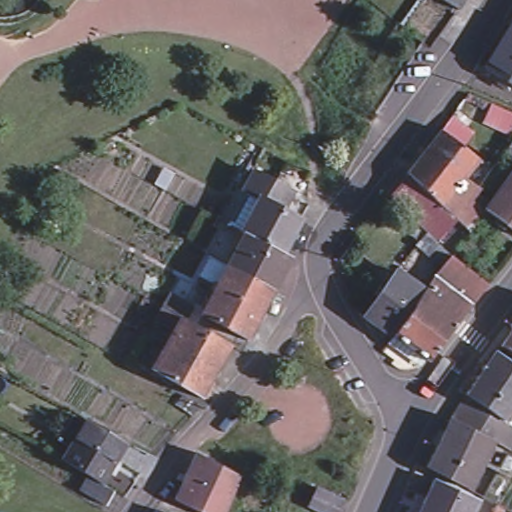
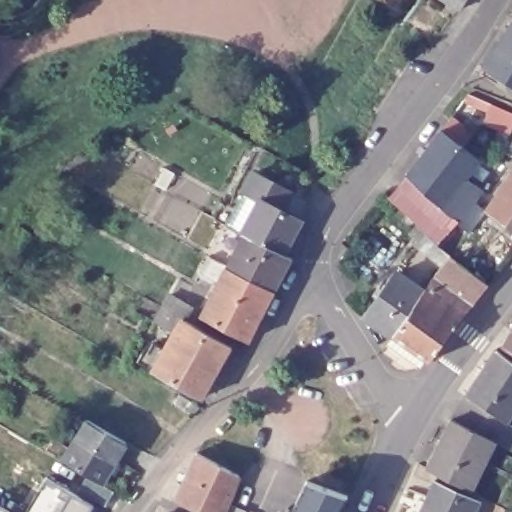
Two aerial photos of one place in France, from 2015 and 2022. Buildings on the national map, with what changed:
unchanged [(447,0),(473,0),(466,10),(447,0)]
unchanged [(512,23),(512,86),(483,68),(512,23)]
unchanged [(419,156),(445,124),(485,158),(471,172),(484,182),(473,197),(485,206),(470,226),(457,214),(456,215),(408,170),(419,156)]
unchanged [(287,248),(287,249),(250,228),(248,227),(266,194),(252,186),(243,202),(226,193),(235,176),(250,184),(260,167),(289,184),(280,201),(305,215),(287,248)]
unchanged [(512,224),(485,206),(512,168),(512,224)]
unchanged [(393,332),(392,331),(365,312),(368,309),(398,268),(419,282),(423,275),(428,279),(435,271),(442,260),(430,249),(417,238),(418,237),(407,227),(416,218),(392,196),(390,194),(408,170),(456,215),(458,216),(437,238),(438,239),(437,240),(450,250),(488,279),(471,300),(466,308),(464,311),(450,326),(428,357),(393,332)]
unchanged [(222,213),(230,200),(241,206),(233,219),(222,213)]
unchanged [(215,293),(222,279),(205,269),(215,249),(233,259),(250,228),(287,249),(287,248),(296,252),(279,285),(278,286),(262,317),(253,334),(207,309),(215,293)]
unchanged [(159,375),(142,365),(155,344),(170,354),(180,337),(160,326),(169,310),(177,296),(185,301),(197,309),(190,322),(236,349),(216,386),(206,402),(159,375)]
unchanged [(512,325),(512,326),(511,326),(512,325)]
unchanged [(512,329),(512,354),(500,347),(512,329)]
unchanged [(485,364),(486,365),(496,351),(512,361),(512,410),(505,420),(465,393),(485,364)]
unchanged [(512,445),(510,447),(508,446),(494,438),(451,416),(465,393),(505,420),(512,424),(512,445)]
unchanged [(106,499),(80,483),(89,470),(62,454),(88,414),(127,436),(102,478),(115,485),(106,499)]
unchanged [(426,466),(451,416),(494,438),(469,488),(426,466)]
unchanged [(239,468),(227,495),(221,512),(217,512),(175,492),(183,475),(197,445),(239,468)]
new [(70,491),(95,505),(91,512),(28,512),(47,478),(70,491)]
unchanged [(478,499),(473,512),(419,512),(435,479),(478,499)]
unchanged [(324,512),(309,505),(317,487),(345,501),(339,512),(324,512)]
unchanged [(180,512),(165,512),(168,506),(180,512)]
new [(0,512),(0,507),(9,512),(0,512)]

